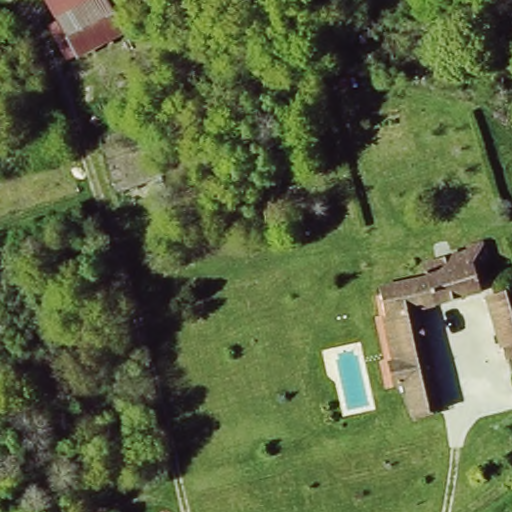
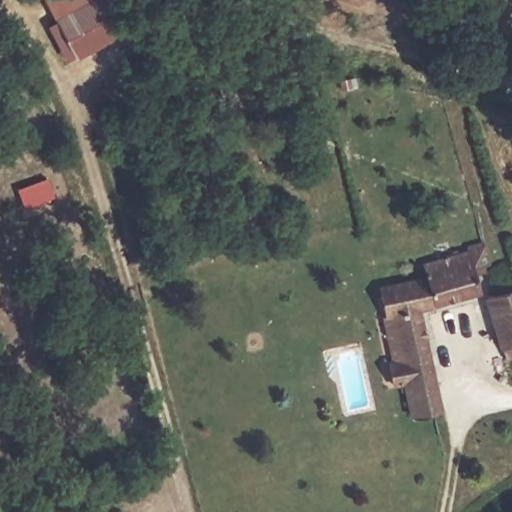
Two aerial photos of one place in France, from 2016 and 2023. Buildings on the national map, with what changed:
unchanged [(90,0),(109,0),(130,34),(78,61),(56,18),(90,0)]
unchanged [(466,235),(482,285),(425,300),(419,276),(425,275),(419,250),(466,235)]
unchanged [(484,295),(482,290),(506,282),(508,287),(512,286),(512,355),(503,357),(484,295)]
unchanged [(409,287),(444,406),(419,413),(387,294),(409,287)]

